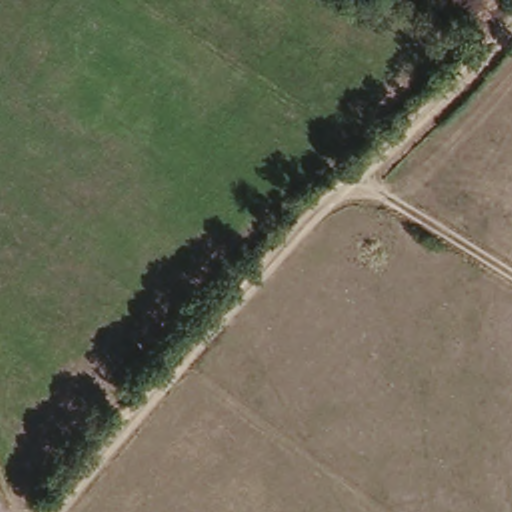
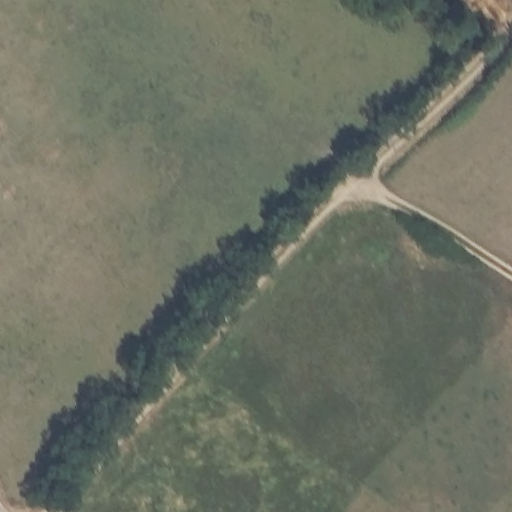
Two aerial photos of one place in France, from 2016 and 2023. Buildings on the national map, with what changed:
[]

